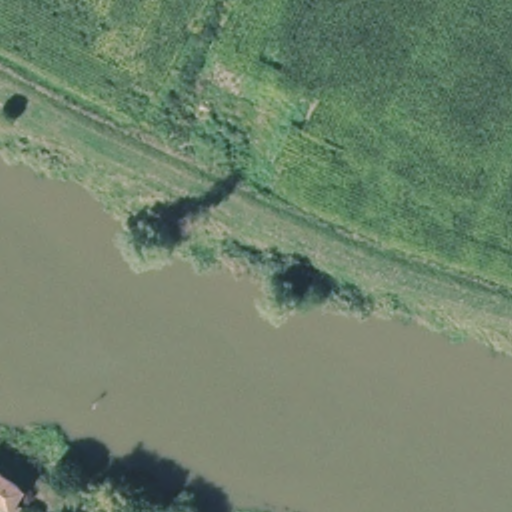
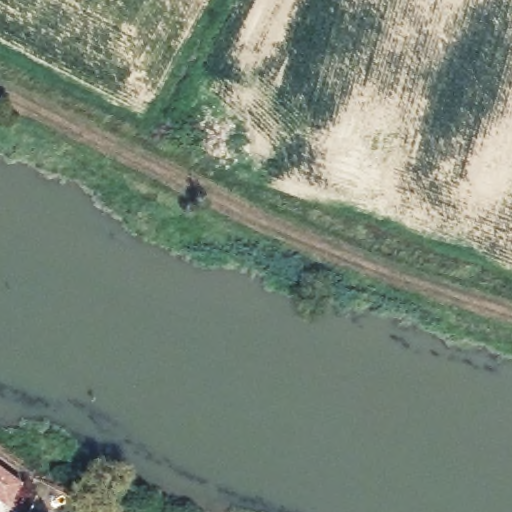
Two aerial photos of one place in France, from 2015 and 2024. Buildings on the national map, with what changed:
unchanged [(17,512),(16,511),(8,507),(0,502),(0,473),(20,487),(13,500),(23,505),(19,512),(17,512)]

